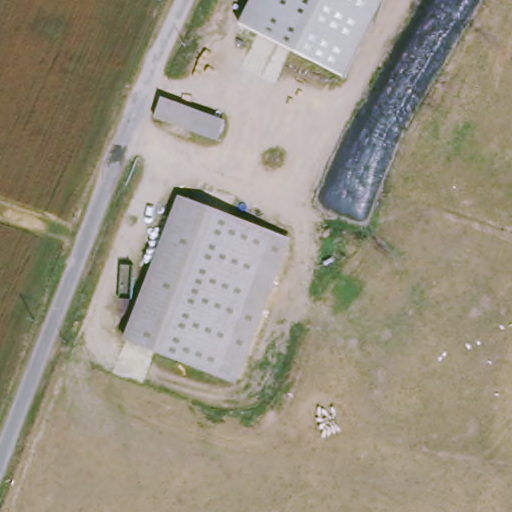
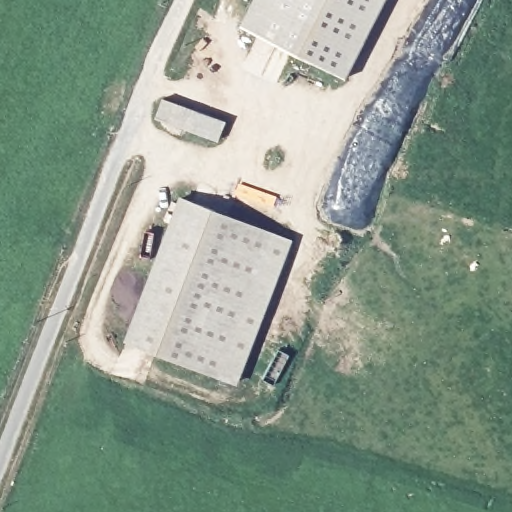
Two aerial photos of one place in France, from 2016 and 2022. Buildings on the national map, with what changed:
unchanged [(239,21),(250,0),(383,0),(345,76),(239,21)]
unchanged [(228,120),(220,139),(160,118),(169,99),(228,120)]
unchanged [(273,233),(219,372),(129,339),(184,198),(273,233)]
unchanged [(293,240),(239,379),(219,372),(273,233),(293,240)]

